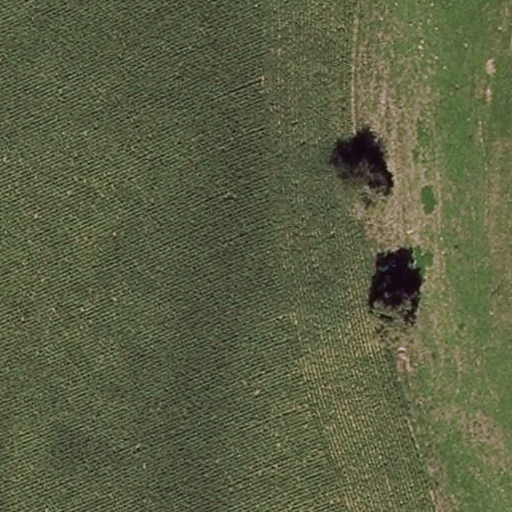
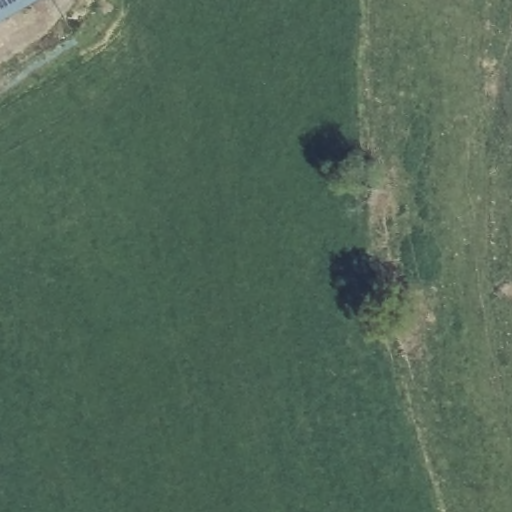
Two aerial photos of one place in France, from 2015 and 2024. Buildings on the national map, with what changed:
new [(0,27),(0,0),(47,0),(0,27)]

